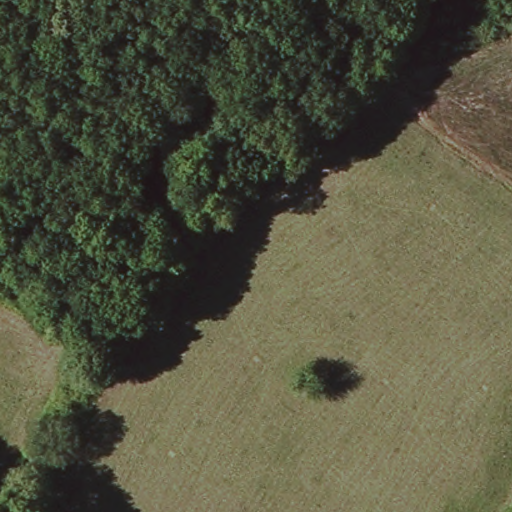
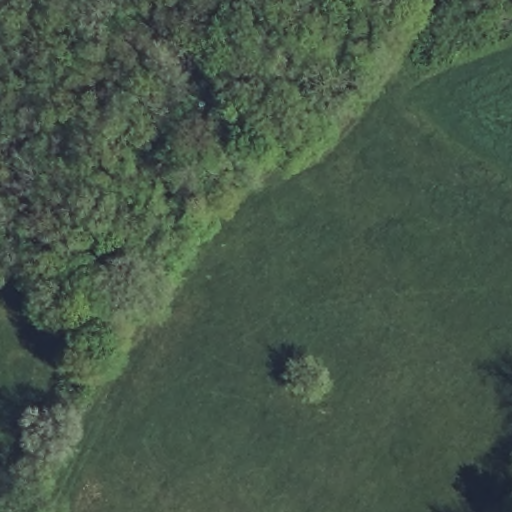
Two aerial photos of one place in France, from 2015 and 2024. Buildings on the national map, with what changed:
[]

